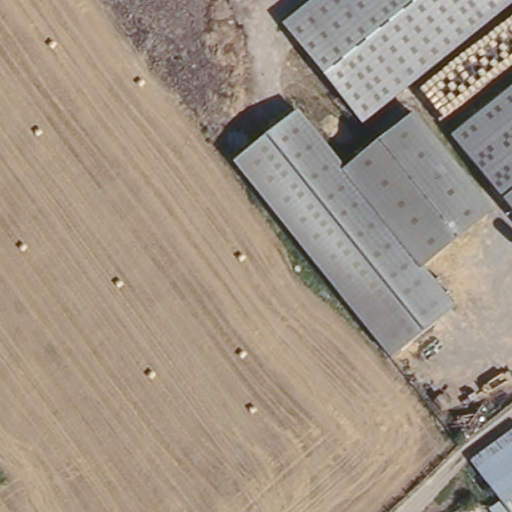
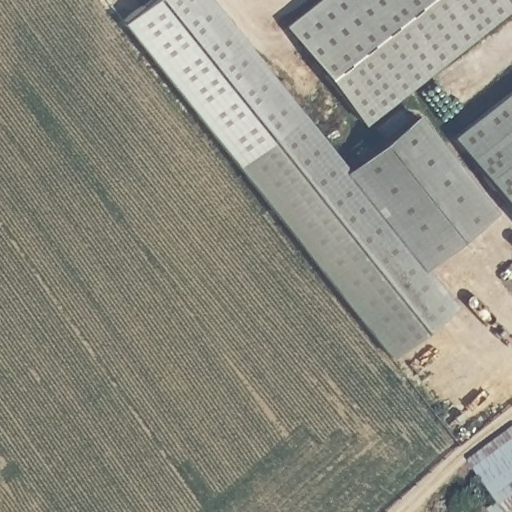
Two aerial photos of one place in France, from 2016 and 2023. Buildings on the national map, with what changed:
new [(121,27),(155,0),(206,0),(295,112),(230,162),(121,27)]
unchanged [(512,0),(512,4),(360,127),(282,24),(312,0),(512,0)]
unchanged [(450,137),(512,88),(512,214),(450,137)]
unchanged [(420,271),(450,308),(386,359),(230,162),(295,112),(341,173),(420,271)]
unchanged [(420,271),(341,173),(416,115),(493,214),(420,271)]
unchanged [(505,506),(485,480),(469,461),(512,425),(512,512),(510,512),(505,506)]

